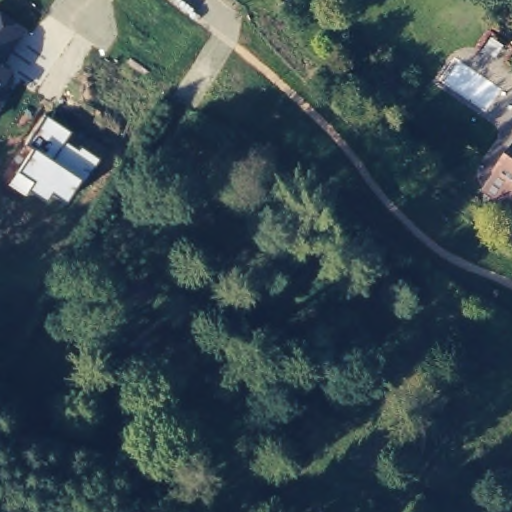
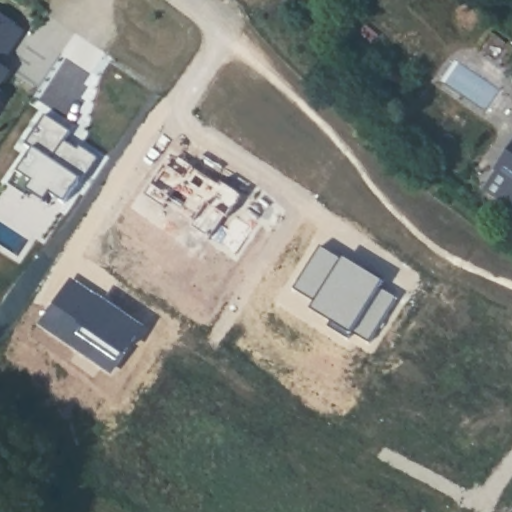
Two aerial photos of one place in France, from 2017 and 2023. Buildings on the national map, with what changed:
unchanged [(2,65),(12,71),(1,90),(7,94),(0,105),(0,14),(25,30),(2,65)]
unchanged [(70,132),(65,141),(78,151),(80,147),(98,159),(82,184),(80,180),(65,202),(51,192),(45,202),(28,190),(33,182),(17,171),(33,149),(25,145),(45,116),(70,132)]
unchanged [(512,154),(512,200),(490,185),(512,154)]
new [(345,260),(343,262),(365,276),(370,267),(388,278),(381,288),(398,299),(370,342),(353,332),(351,336),(331,322),(335,317),(316,306),(319,301),(296,287),(322,246),(345,260)]
new [(73,285),(140,332),(112,374),(44,327),(73,285)]

